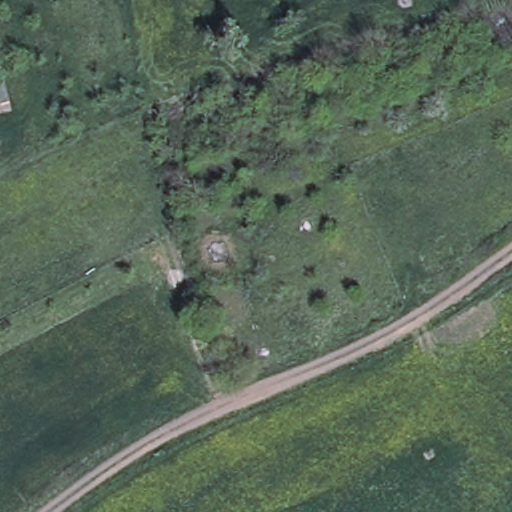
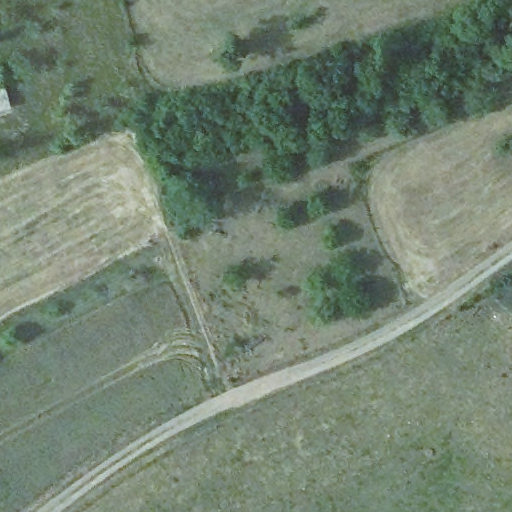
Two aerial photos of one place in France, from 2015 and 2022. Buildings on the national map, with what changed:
unchanged [(4,84),(9,103),(0,105),(0,85),(4,84)]

